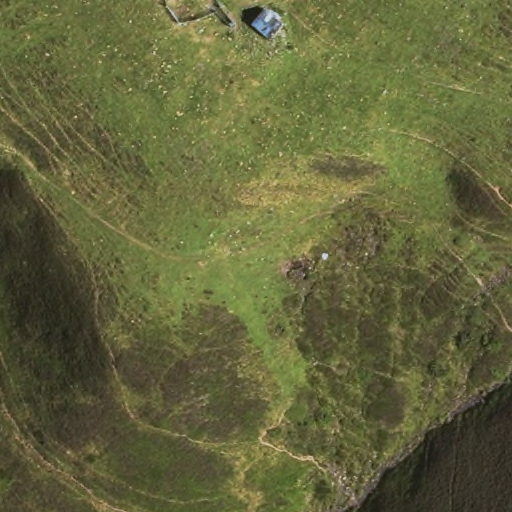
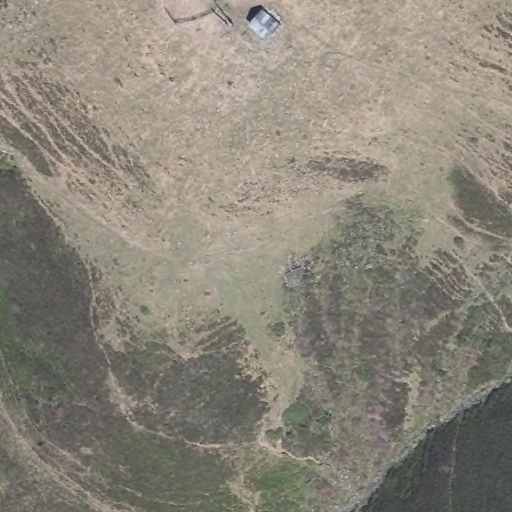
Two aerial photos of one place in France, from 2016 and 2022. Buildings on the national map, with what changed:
unchanged [(279,19),(261,34),(246,21),(253,12),(263,5),(279,19)]

